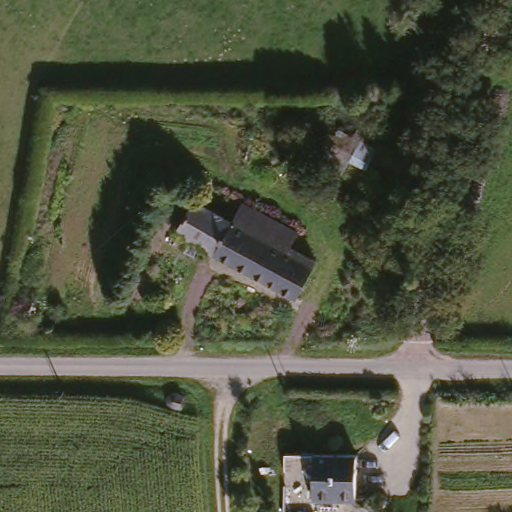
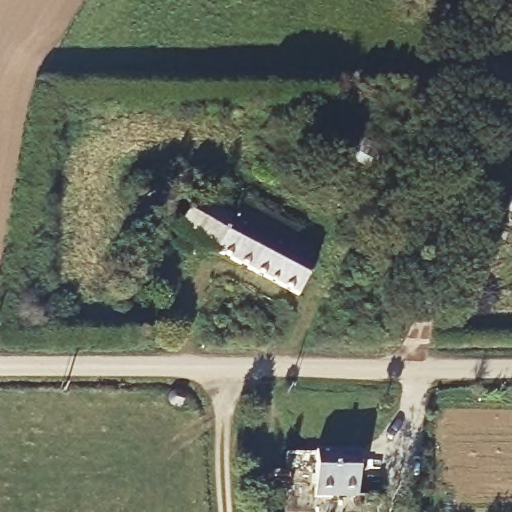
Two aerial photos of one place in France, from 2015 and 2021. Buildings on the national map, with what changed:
unchanged [(194,201),(233,222),(242,205),(283,227),(296,233),(289,247),(314,260),(296,295),(257,274),(178,233),(194,201)]
unchanged [(356,496),(335,496),(335,500),(313,500),(313,457),(357,457),(356,496)]

